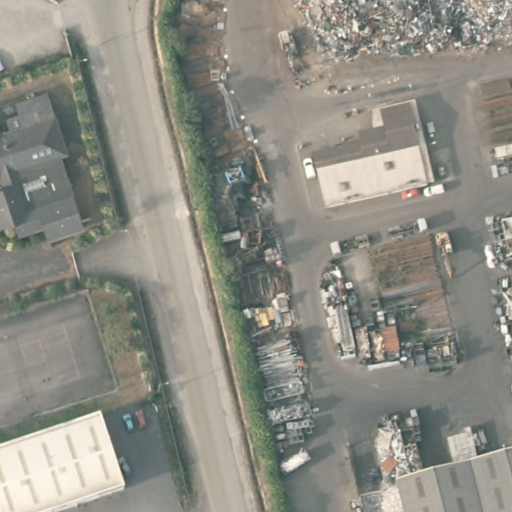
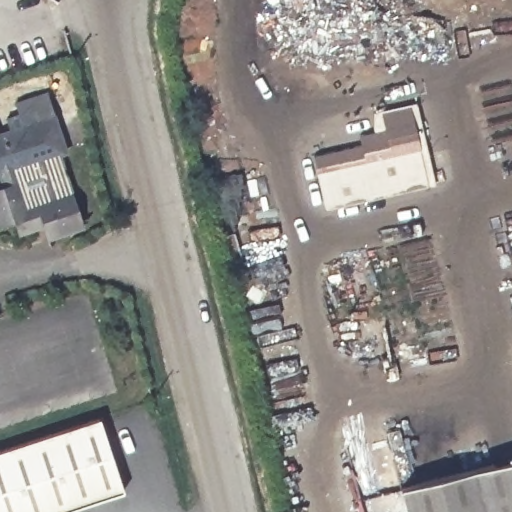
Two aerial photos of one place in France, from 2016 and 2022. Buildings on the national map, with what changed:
unchanged [(47,93),(66,150),(64,151),(87,227),(76,230),(78,235),(65,239),(64,235),(53,238),(48,226),(22,235),(16,220),(0,226),(0,183),(6,181),(2,171),(0,172),(0,132),(10,129),(7,119),(21,115),(17,102),(47,93)]
unchanged [(412,100),(417,119),(421,118),(439,183),(331,210),(315,152),(364,140),(361,131),(387,124),(382,108),(412,100)]
unchanged [(96,415),(120,488),(48,512),(0,512),(0,447),(96,415)]
unchanged [(512,512),(410,512),(403,486),(512,458),(512,512)]

